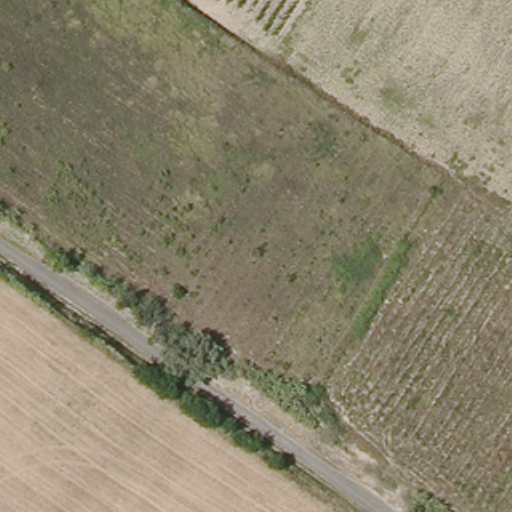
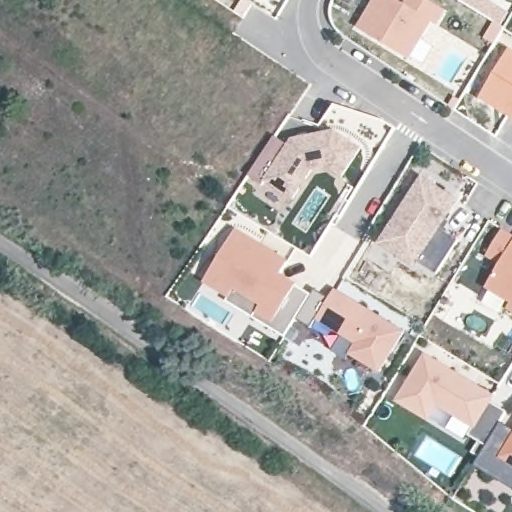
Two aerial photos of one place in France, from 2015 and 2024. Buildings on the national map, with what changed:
new [(374,0),(397,0),(405,5),(408,0),(428,0),(445,11),(437,25),(431,22),(409,59),(358,28),(374,0)]
new [(509,11),(501,25),(504,26),(494,43),(484,37),(494,20),(459,0),(489,0),(509,11)]
new [(512,49),(512,118),(477,97),(509,47),(512,49)]
new [(288,145),(292,140),(299,139),(305,137),(334,131),(360,149),(342,177),(327,167),(312,170),(292,200),(265,182),(262,185),(248,176),(274,136),(288,145)]
new [(423,179),(457,201),(439,227),(459,241),(437,274),(417,261),(414,265),(380,243),(423,179)]
new [(331,296),(336,287),(369,307),(375,311),(405,330),(380,370),(351,352),(358,342),(332,326),(318,317),(311,328),(297,319),(287,335),(254,315),(229,300),(232,295),(206,278),(236,229),(281,256),(289,260),(285,267),(281,273),(298,283),(313,292),(316,287),(331,296)]
new [(487,255),(503,230),(512,235),(512,311),(507,308),(511,302),(487,287),(500,265),(487,255)]
new [(480,457),(472,451),(480,441),(470,435),(465,438),(447,428),(454,416),(439,407),(430,422),(395,402),(425,352),(497,396),(492,403),(507,411),(500,422),(512,429),(512,488),(475,465),(480,457)]

